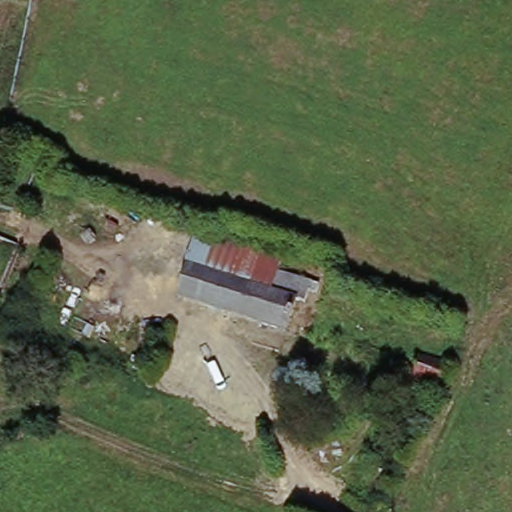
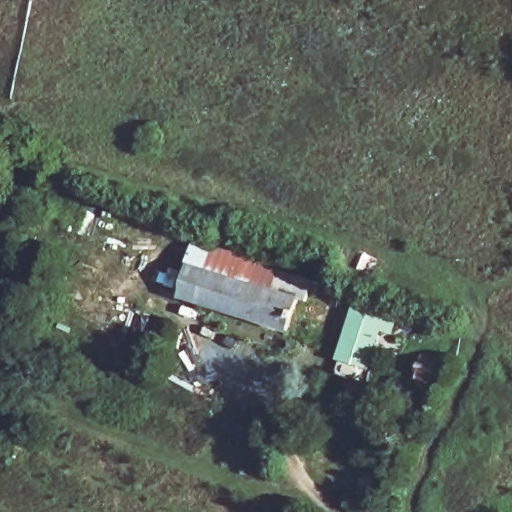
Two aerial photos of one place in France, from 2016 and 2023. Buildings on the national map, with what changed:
unchanged [(203,238),(285,260),(285,264),(331,278),(329,288),(317,285),(313,299),(303,297),(195,267),(203,238)]
unchanged [(303,297),(293,331),(185,299),(195,267),(303,297)]
new [(398,314),(391,336),(380,333),(369,371),(337,361),(354,301),(398,314)]
unchanged [(448,364),(441,389),(418,381),(426,358),(448,364)]
unchanged [(394,478),(378,512),(377,512),(362,506),(379,470),(394,478)]

